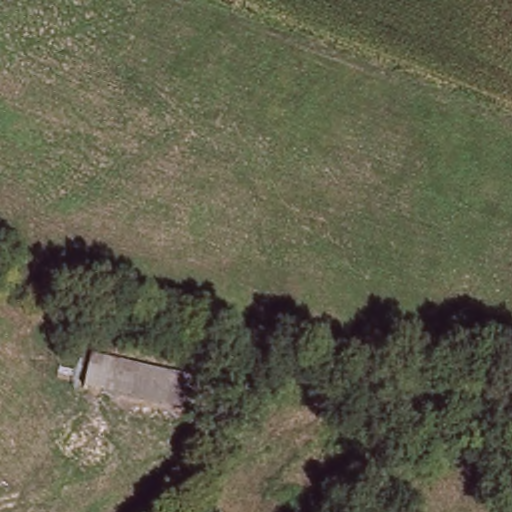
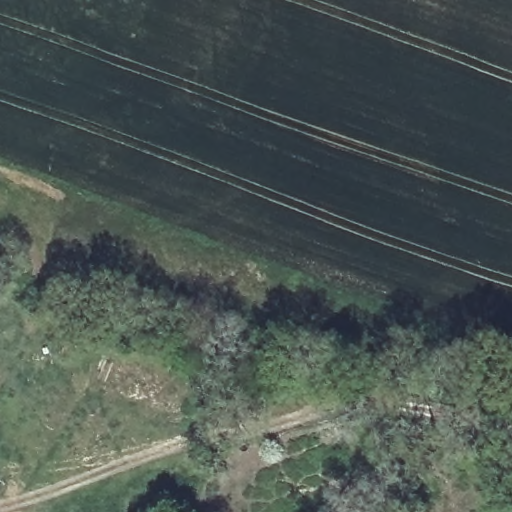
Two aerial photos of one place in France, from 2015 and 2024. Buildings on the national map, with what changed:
demolished [(184,376),(179,409),(84,388),(90,356),(184,376)]

